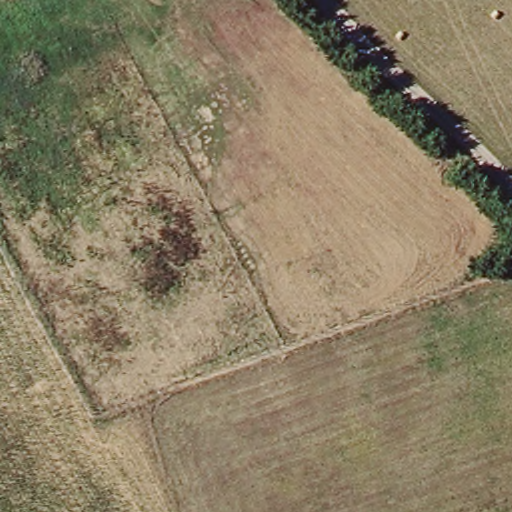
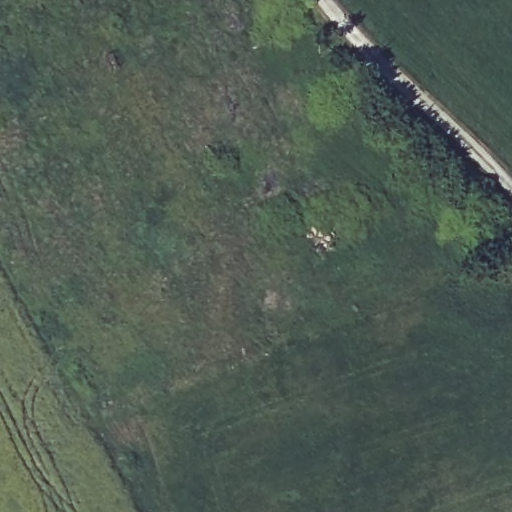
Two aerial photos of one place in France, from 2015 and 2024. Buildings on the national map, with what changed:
[]

